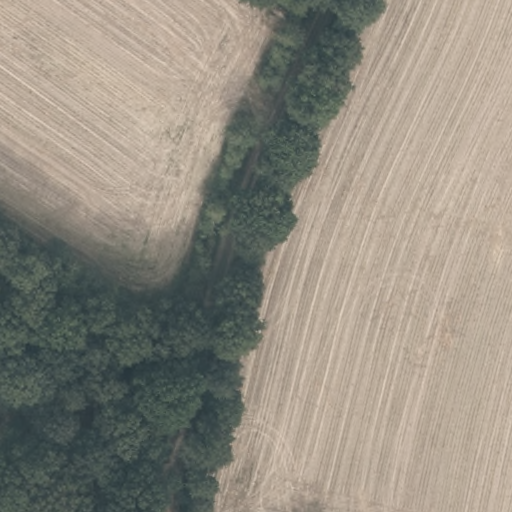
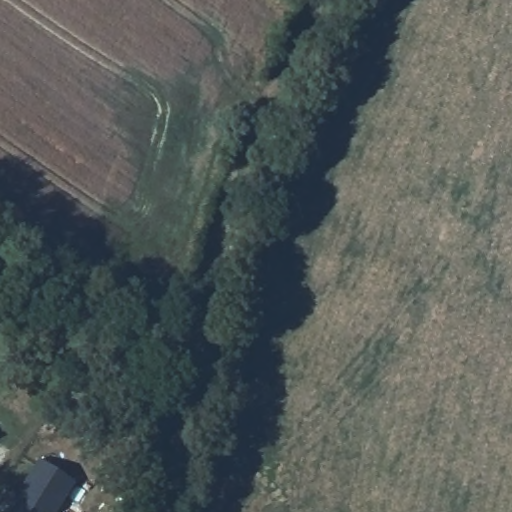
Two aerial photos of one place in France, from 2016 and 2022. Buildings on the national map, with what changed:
new [(76,482),(57,512),(7,512),(40,460),(76,482)]

